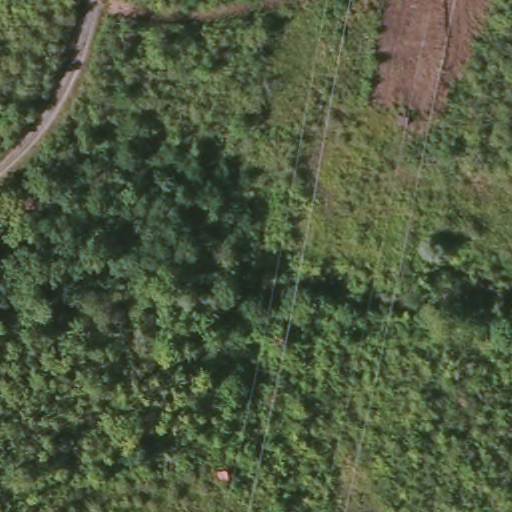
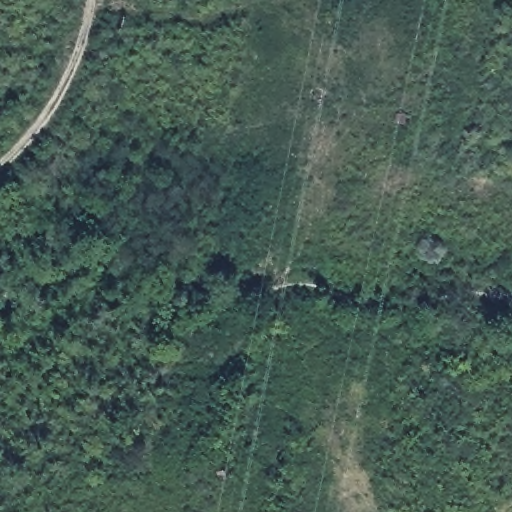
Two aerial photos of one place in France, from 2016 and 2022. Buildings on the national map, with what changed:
unchanged [(320,107),(307,97),(319,83),(331,92),(327,97),(320,107)]

